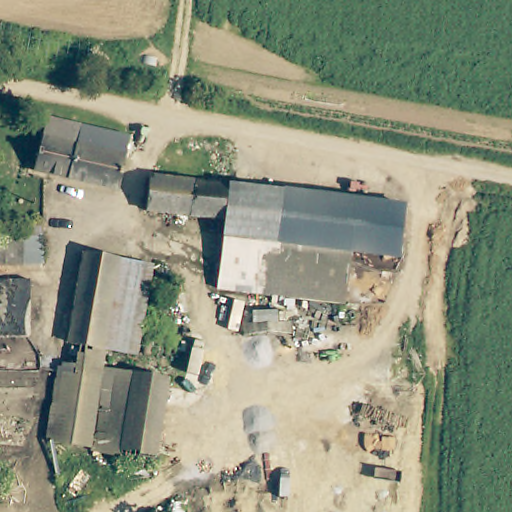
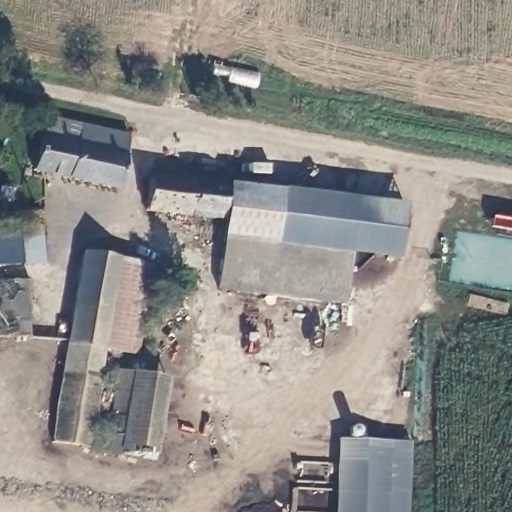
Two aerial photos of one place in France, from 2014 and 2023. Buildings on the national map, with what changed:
unchanged [(98,155),(124,161),(116,190),(32,168),(45,126),(49,115),(103,126),(100,143),(98,155)]
unchanged [(149,209),(152,166),(174,168),(173,181),(224,187),(222,217),(149,209)]
unchanged [(223,276),(231,187),(239,188),(359,202),(350,300),(222,286),(223,276)]
unchanged [(359,202),(405,208),(400,258),(354,253),(359,202)]
unchanged [(30,242),(31,242),(33,226),(45,227),(54,228),(51,266),(32,265),(0,263),(0,241),(30,242)]
unchanged [(78,255),(122,262),(121,266),(112,309),(111,311),(73,306),(78,255)]
unchanged [(111,311),(112,309),(121,266),(122,262),(155,267),(155,269),(138,356),(105,351),(111,311)]
unchanged [(0,337),(0,279),(26,280),(27,298),(31,298),(29,337),(0,337)]
unchanged [(105,351),(69,345),(73,306),(111,311),(105,351)]
unchanged [(55,368),(66,369),(69,345),(105,351),(103,371),(91,449),(50,442),(55,368)]
demolished [(31,377),(0,375),(0,354),(32,356),(31,377)]
unchanged [(103,371),(169,381),(157,459),(91,449),(103,371)]
demolished [(36,420),(0,418),(0,387),(38,390),(36,420)]
new [(409,442),(406,512),(335,512),(338,439),(409,442)]

